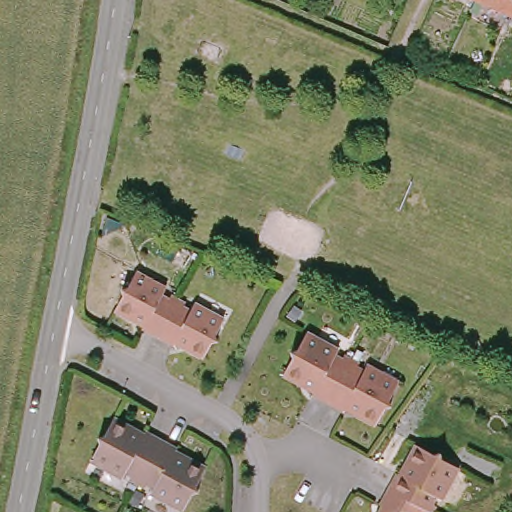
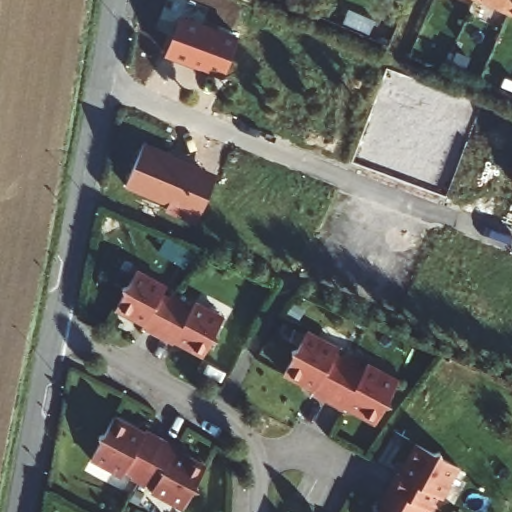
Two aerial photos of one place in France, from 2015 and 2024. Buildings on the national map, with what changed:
unchanged [(480,0),(512,0),(512,1),(507,11),(480,0)]
unchanged [(512,1),(512,13),(507,11),(512,1)]
new [(223,77),(163,55),(180,15),(240,36),(223,77)]
unchanged [(512,94),(500,89),(505,76),(512,79),(512,94)]
new [(195,224),(165,210),(167,204),(125,186),(145,141),(218,174),(195,224)]
unchanged [(143,331),(145,328),(117,314),(124,299),(123,292),(128,290),(137,274),(167,290),(164,296),(170,299),(172,296),(180,300),(158,339),(143,331)]
unchanged [(187,304),(186,307),(194,311),(197,306),(225,320),(217,335),(220,343),(212,344),(203,359),(176,344),(175,347),(158,339),(180,300),(187,304)]
unchanged [(315,394),(316,391),(285,375),(295,356),(294,350),(299,350),(308,332),(340,348),(337,356),(345,359),(346,357),(352,360),(330,402),(315,394)]
unchanged [(360,364),(359,368),(365,372),(370,365),(400,380),(390,399),(393,407),(386,407),(378,424),(347,407),(345,410),(330,402),(352,360),(360,364)]
unchanged [(99,439),(106,438),(115,420),(146,436),(147,433),(163,441),(140,486),(132,482),(134,478),(126,474),(123,480),(92,464),(102,446),(99,439)]
unchanged [(178,449),(177,452),(207,468),(197,487),(200,492),(193,493),(185,511),(152,494),(155,489),(148,485),(146,489),(140,486),(163,441),(178,449)]
unchanged [(395,473),(397,474),(414,445),(432,454),(437,453),(439,454),(440,459),(458,469),(441,499),(435,496),(431,504),(435,506),(431,512),(430,512),(425,510),(386,489),(395,473)]
unchanged [(378,503),(386,489),(425,510),(424,512),(377,512),(381,505),(378,503)]

